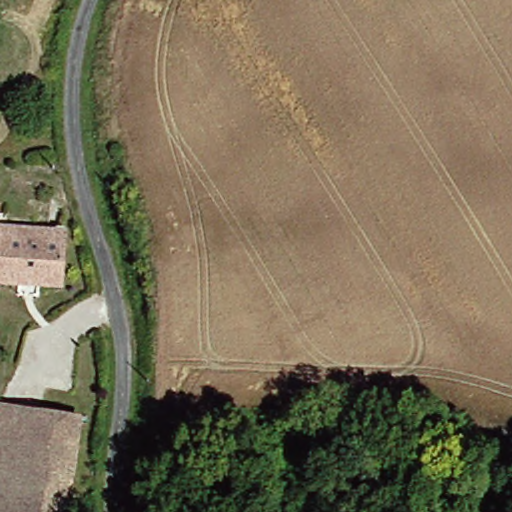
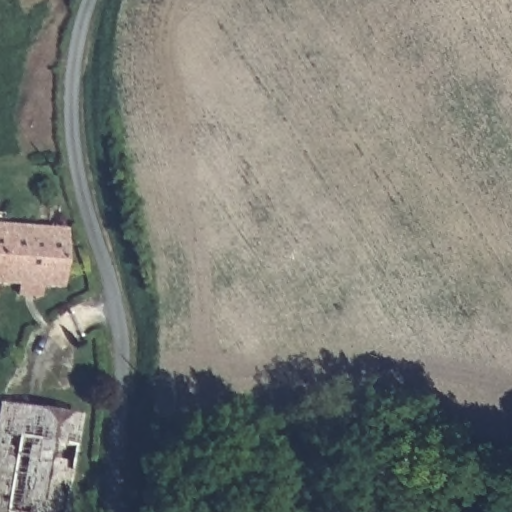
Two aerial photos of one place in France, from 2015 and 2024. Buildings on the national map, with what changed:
unchanged [(0,229),(54,232),(55,242),(51,288),(0,285),(0,229)]
unchanged [(71,442),(14,436),(12,448),(0,446),(0,404),(75,413),(71,442)]
unchanged [(14,436),(71,442),(62,512),(0,512),(0,446),(12,448),(14,436)]

